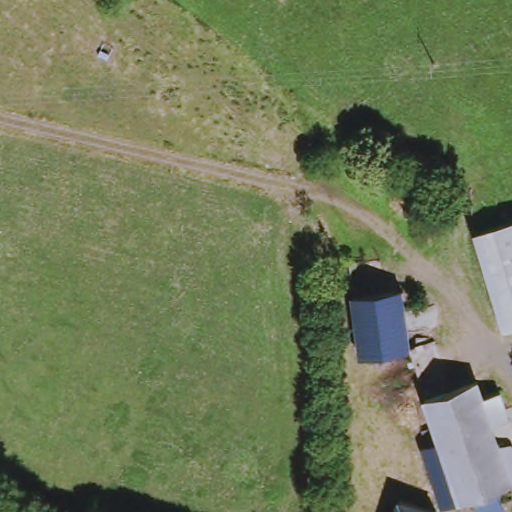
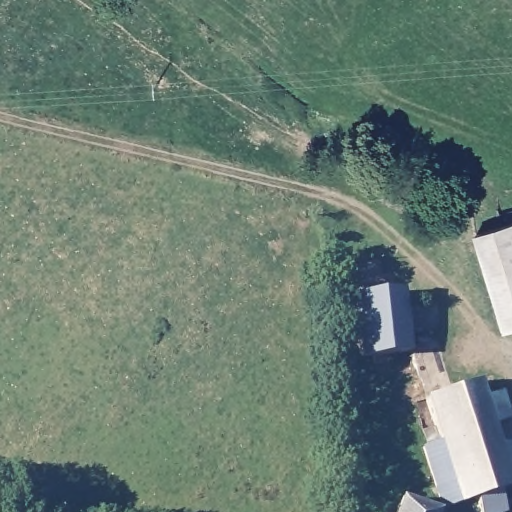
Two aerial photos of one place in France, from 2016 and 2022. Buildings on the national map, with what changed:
unchanged [(512,218),(512,325),(508,327),(503,328),(491,291),(472,230),(512,218)]
unchanged [(405,290),(412,351),(361,356),(355,296),(405,290)]
unchanged [(495,489),(501,512),(475,512),(470,497),(436,507),(417,449),(423,447),(417,430),(429,426),(420,398),(475,380),(480,398),(497,393),(505,421),(495,424),(502,458),(512,455),(512,484),(508,486),(495,489)]
unchanged [(394,499),(431,510),(430,512),(390,512),(394,499)]

